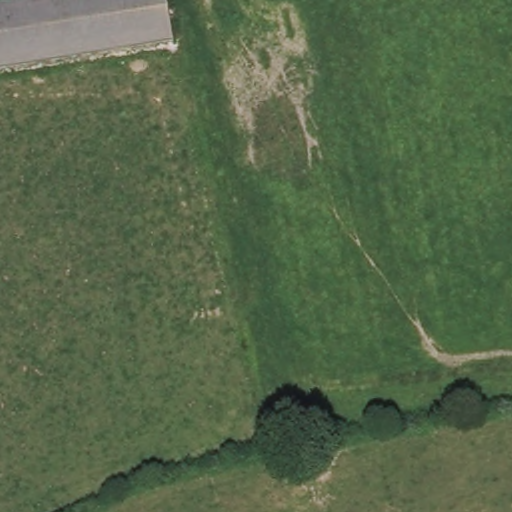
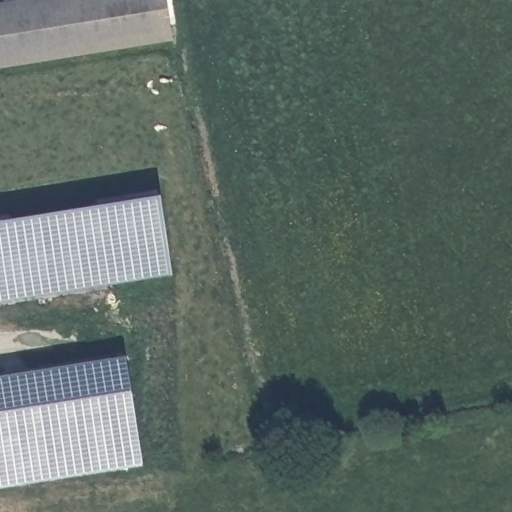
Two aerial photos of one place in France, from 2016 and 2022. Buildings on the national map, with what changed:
unchanged [(0,1),(7,0),(168,0),(176,38),(0,66),(0,1)]
new [(177,272),(0,300),(0,219),(164,193),(177,272)]
new [(146,465),(0,488),(0,376),(129,356),(146,465)]

